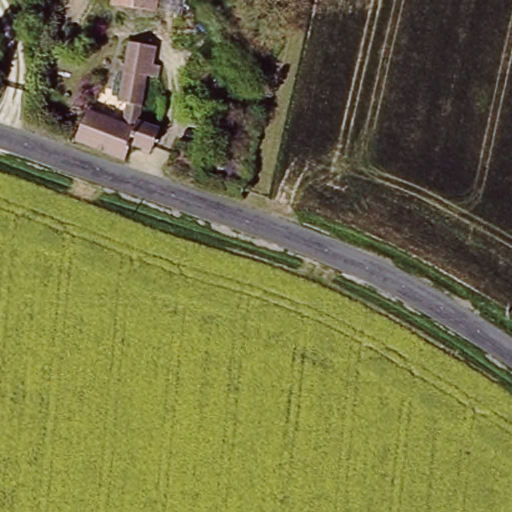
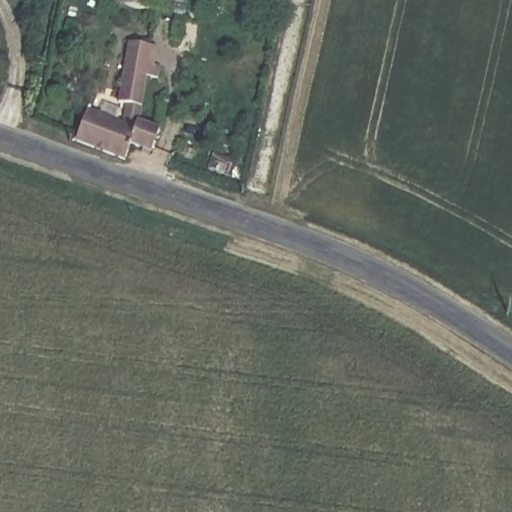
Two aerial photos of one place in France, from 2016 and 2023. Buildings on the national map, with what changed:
unchanged [(121,0),(157,0),(156,6),(121,0)]
unchanged [(158,75),(148,72),(136,116),(155,122),(148,146),(140,144),(137,154),(126,150),(124,157),(117,155),(72,138),(85,102),(90,105),(96,91),(104,94),(98,108),(121,116),(126,102),(116,99),(129,55),(135,38),(153,44),(148,61),(161,65),(158,75)]

